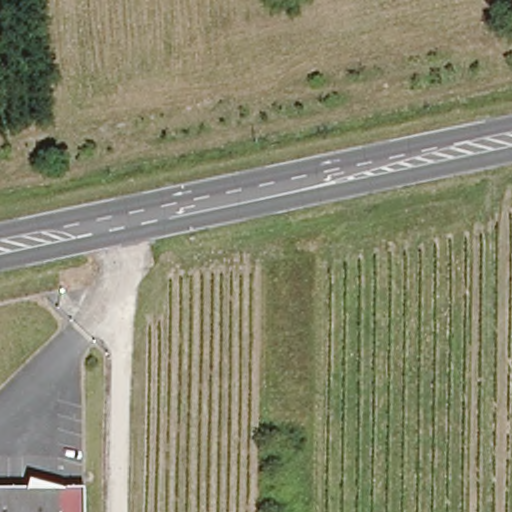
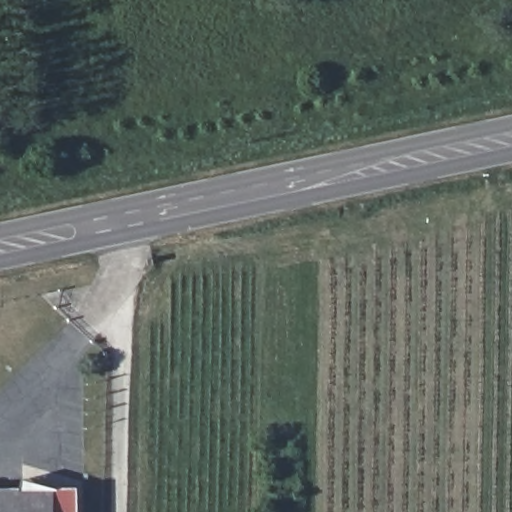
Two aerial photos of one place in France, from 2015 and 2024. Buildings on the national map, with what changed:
unchanged [(83,512),(0,512),(0,489),(83,488),(83,512)]

